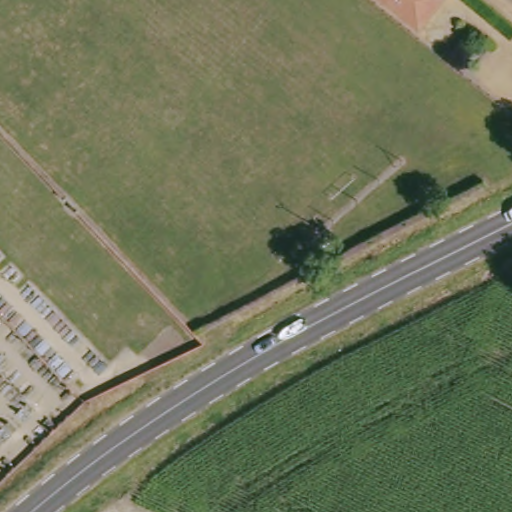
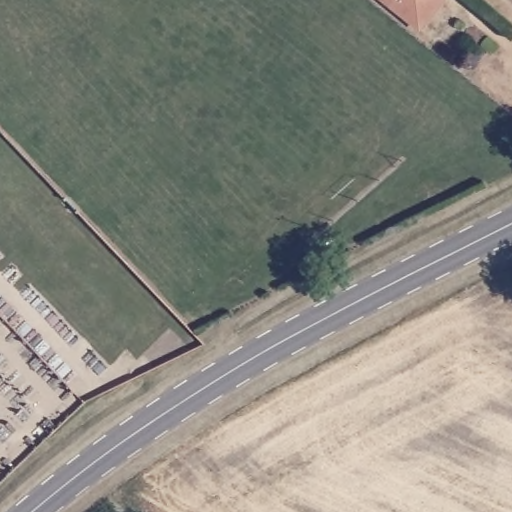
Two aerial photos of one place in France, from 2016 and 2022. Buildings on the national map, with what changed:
unchanged [(416,24),(386,0),(435,0),(416,24)]

